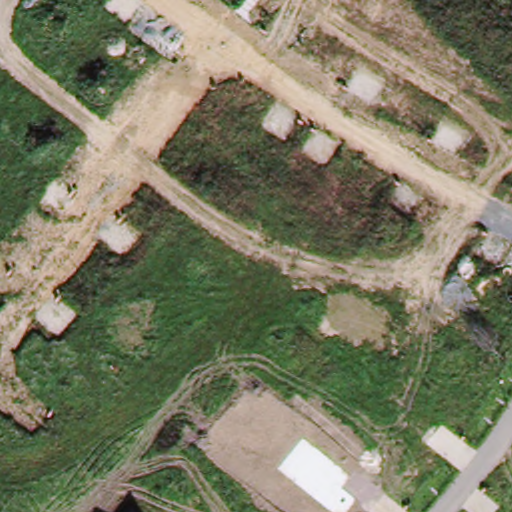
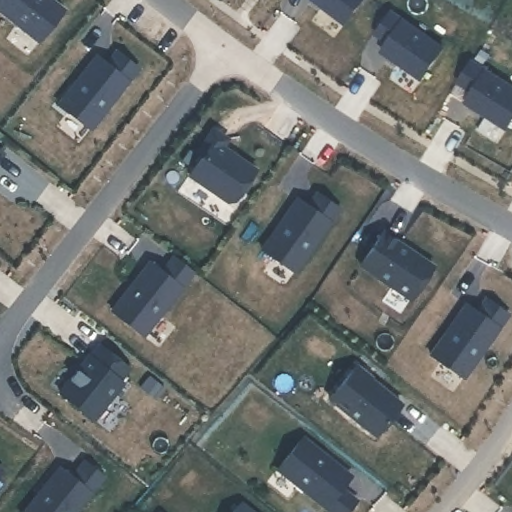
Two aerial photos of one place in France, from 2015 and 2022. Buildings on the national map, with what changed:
new [(37,42),(0,13),(0,0),(49,0),(62,10),(37,42)]
new [(313,0),(361,0),(344,23),(313,0)]
new [(389,12),(440,48),(418,79),(380,52),(386,43),(373,34),(389,12)]
new [(92,59),(105,69),(117,53),(137,68),(87,133),(55,108),(92,59)]
new [(470,61),(512,88),(512,119),(506,129),(465,103),(472,92),(456,82),(470,61)]
new [(200,156),(194,152),(211,129),(225,139),(220,147),(252,171),(231,201),(224,202),(186,176),(200,156)]
new [(0,155),(0,154),(1,154),(0,155)]
new [(295,199),(306,207),(315,193),(337,209),(292,273),(260,250),(295,199)]
new [(380,232),(431,266),(408,299),(357,265),(380,232)]
new [(148,262),(161,272),(173,256),(192,271),(142,335),(111,310),(148,262)]
new [(467,300),(478,307),(487,294),(510,310),(462,377),(429,354),(467,300)]
new [(87,356),(89,357),(99,346),(128,369),(119,381),(122,384),(92,421),(59,394),(87,356)]
new [(355,365),(370,377),(369,378),(400,403),(375,435),(329,397),(355,365)]
new [(352,475),(343,488),(358,499),(348,512),(326,512),(275,469),(304,435),(352,475)]
new [(57,467),(70,477),(82,461),(102,477),(74,512),(22,512),(57,467)]
new [(0,472),(0,470),(1,470),(0,472)]
new [(240,502),(252,512),(232,512),(240,502)]

